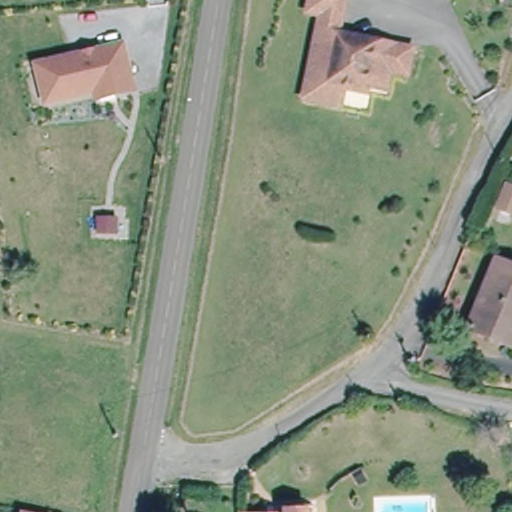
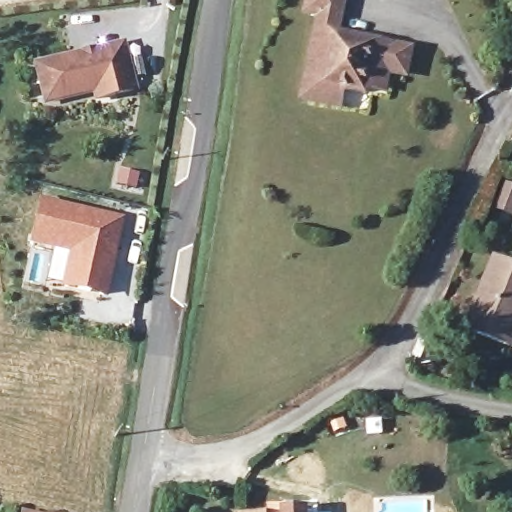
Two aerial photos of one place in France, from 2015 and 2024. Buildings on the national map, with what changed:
unchanged [(345,46),(360,49),(362,39),(416,51),(412,69),(392,66),(389,81),(369,76),(367,91),(319,83),(320,71),(307,70),(313,14),(304,13),(305,0),(337,0),(331,36),(346,38),(345,46)]
unchanged [(93,93),(43,106),(33,68),(82,55),(92,52),(121,45),(133,91),(115,96),(95,101),(93,93)]
unchanged [(320,71),(319,83),(367,91),(365,100),(346,96),(344,111),(301,105),(307,70),(320,71)]
unchanged [(139,189),(120,188),(121,174),(140,174),(139,189)]
unchanged [(511,190),(512,191),(512,216),(503,213),(511,190)]
new [(119,221),(104,298),(62,290),(72,251),(32,244),(42,203),(119,221)]
demolished [(131,228),(112,227),(113,213),(132,213),(131,228)]
unchanged [(499,258),(512,263),(512,344),(472,329),(499,258)]
unchanged [(282,502),(315,503),(315,512),(282,512),(282,502)]

